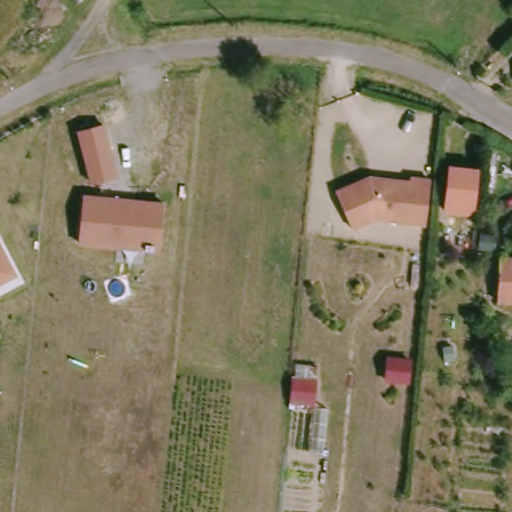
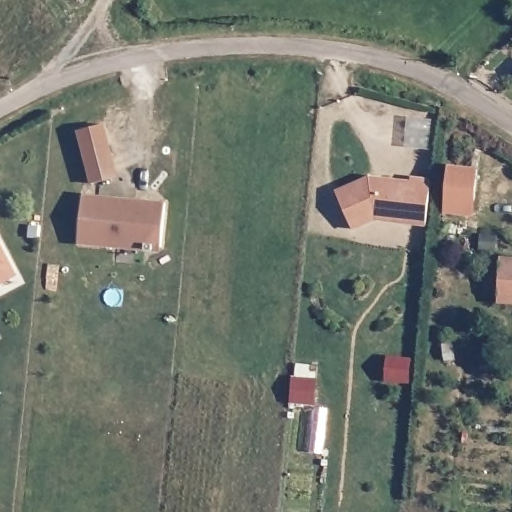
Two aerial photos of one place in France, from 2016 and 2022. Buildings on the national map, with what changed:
unchanged [(80,134),(108,126),(120,181),(93,188),(80,134)]
unchanged [(447,212),(452,169),(479,172),(474,216),(447,212)]
unchanged [(427,227),(407,224),(407,218),(373,216),(375,222),(353,230),(338,193),(375,179),(376,184),(383,184),(383,180),(411,184),(411,180),(432,182),(427,227)]
unchanged [(86,197),(167,206),(161,258),(79,250),(86,197)]
unchanged [(493,237),(492,250),(479,250),(480,237),(493,237)]
unchanged [(17,273),(0,283),(0,244),(17,273)]
unchanged [(506,255),(512,255),(512,300),(503,299),(506,255)]
unchanged [(453,350),(452,367),(444,367),(444,350),(453,350)]

